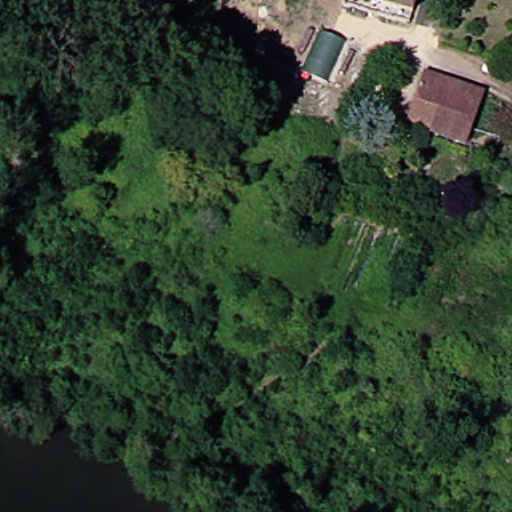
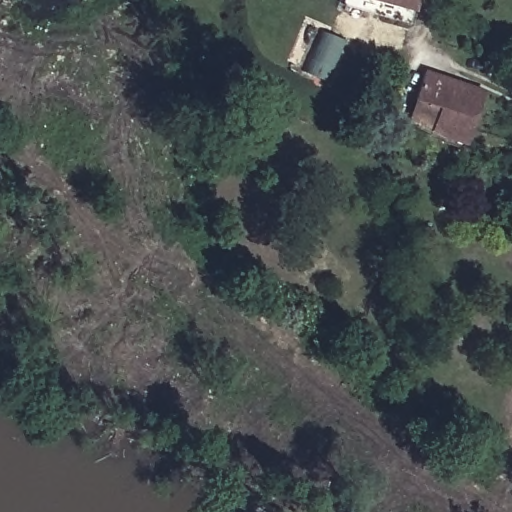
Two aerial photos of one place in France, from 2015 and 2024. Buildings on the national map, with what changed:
unchanged [(340,0),(412,0),(410,9),(407,20),(340,1),(340,0)]
unchanged [(309,63),(300,77),(285,70),(305,24),(362,47),(348,79),(309,63)]
unchanged [(430,134),(437,111),(411,102),(415,89),(420,74),(478,94),(462,144),(430,134)]

